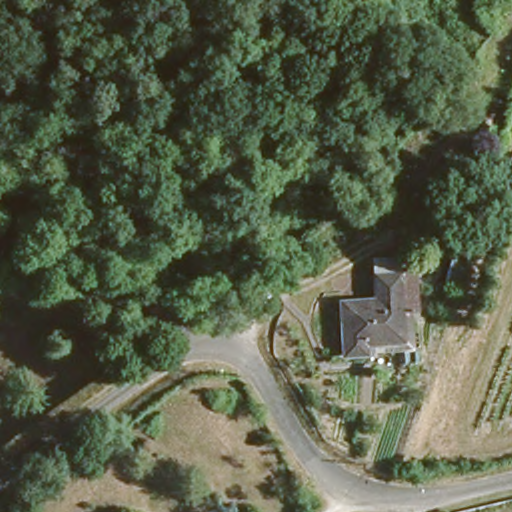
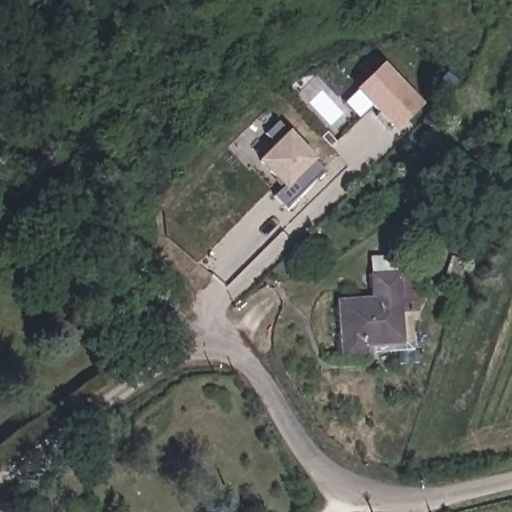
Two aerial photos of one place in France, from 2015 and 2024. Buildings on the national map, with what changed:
new [(419,107),(392,131),(372,110),(362,120),(344,102),(380,66),(419,107)]
new [(286,207),(275,197),(283,191),(256,161),(272,145),(265,136),(278,123),(287,130),(313,159),(325,171),(286,207)]
unchanged [(392,188),(430,157),(456,188),(437,203),(431,194),(410,211),(392,188)]
unchanged [(367,341),(367,351),(342,353),(339,292),(370,288),(373,264),(406,262),(411,340),(367,341)]

